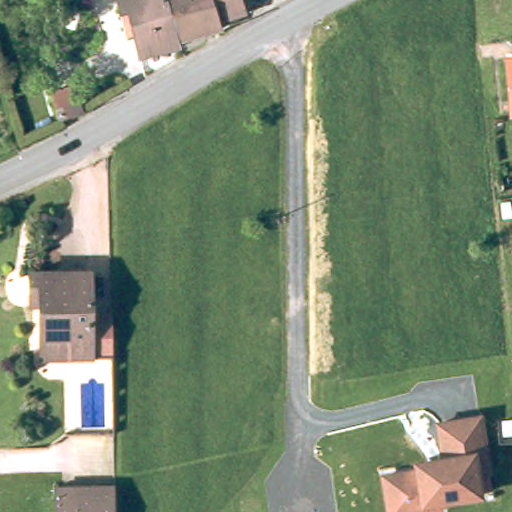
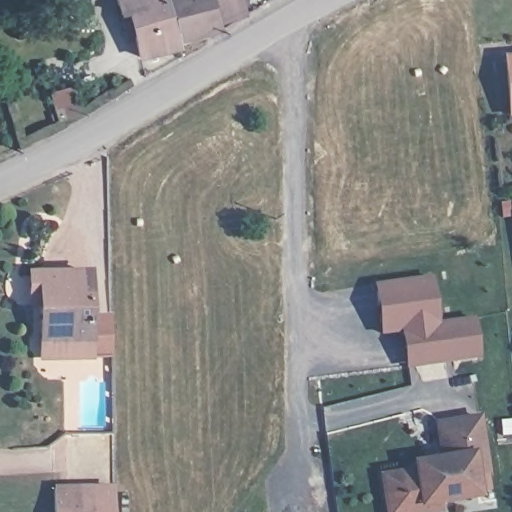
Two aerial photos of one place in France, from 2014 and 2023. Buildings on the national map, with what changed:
unchanged [(126,18),(121,0),(173,0),(185,45),(186,51),(146,62),(140,38),(132,40),(126,18)]
unchanged [(225,24),(227,33),(205,39),(207,48),(190,53),(189,44),(186,45),(173,0),(218,0),(225,24)]
unchanged [(218,0),(244,0),(249,16),(225,24),(218,0)]
unchanged [(511,57),(512,57),(512,70),(511,57)]
unchanged [(77,85),(85,112),(60,120),(52,92),(77,85)]
unchanged [(509,222),(507,208),(512,207),(512,222),(509,222)]
unchanged [(95,272),(98,358),(47,358),(46,306),(37,306),(37,297),(37,274),(95,272)]
new [(431,278),(438,324),(472,318),(479,356),(415,366),(410,328),(382,332),(375,286),(431,278)]
unchanged [(487,462),(477,458),(482,498),(422,512),(385,512),(380,471),(438,456),(434,416),(483,411),(487,462)]
unchanged [(116,488),(116,512),(56,512),(55,489),(116,488)]

